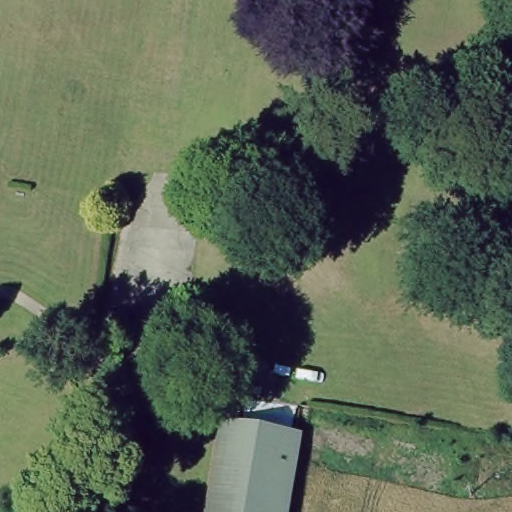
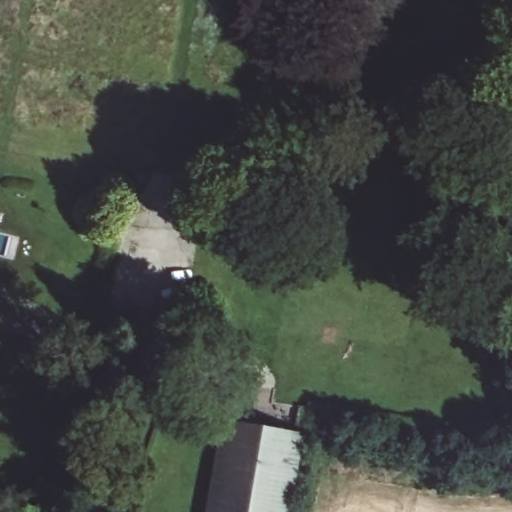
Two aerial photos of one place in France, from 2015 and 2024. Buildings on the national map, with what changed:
unchanged [(279,512),(212,512),(228,421),(293,432),(279,512)]

